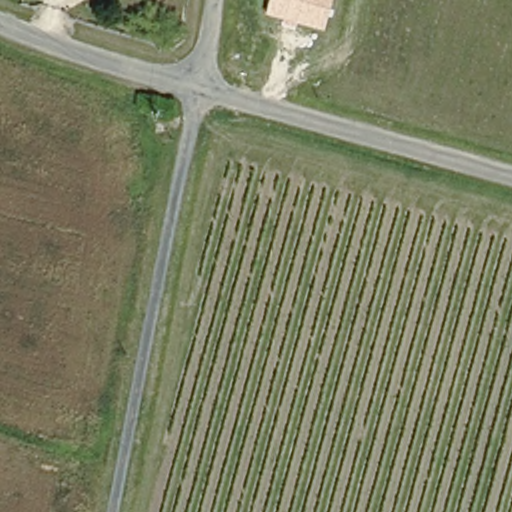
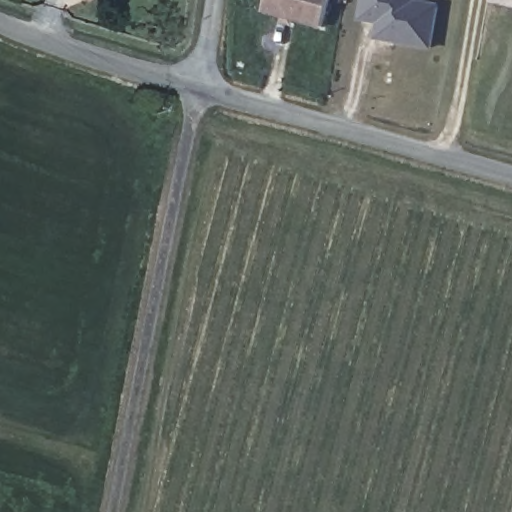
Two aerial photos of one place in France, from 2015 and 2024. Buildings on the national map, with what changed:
unchanged [(282,24),(284,20),(264,14),(268,0),(332,0),(323,31),(295,22),(295,27),(282,24)]
new [(377,26),(361,23),(364,0),(419,0),(418,2),(442,6),(434,51),(375,41),(377,26)]

